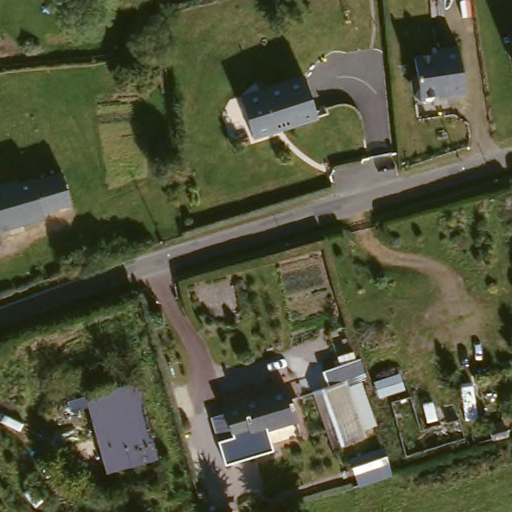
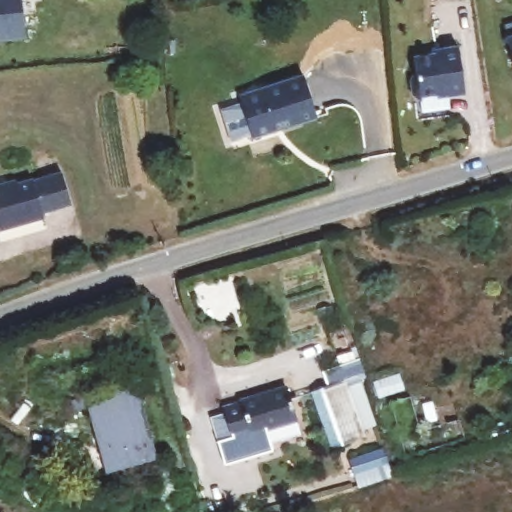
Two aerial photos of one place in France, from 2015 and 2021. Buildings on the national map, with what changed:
new [(0,38),(0,0),(21,0),(25,35),(0,38)]
unchanged [(501,23),(512,19),(512,62),(501,23)]
unchanged [(447,92),(420,96),(415,93),(413,80),(417,75),(414,56),(437,53),(436,49),(458,46),(466,93),(448,95),(447,92)]
unchanged [(319,111),(277,124),(278,129),(256,136),(243,94),(307,73),(319,111)]
unchanged [(14,183),(64,170),(71,202),(39,210),(40,218),(0,227),(0,181),(12,178),(14,183)]
unchanged [(310,391),(348,379),(362,433),(323,444),(310,391)]
unchanged [(287,384),(297,421),(234,439),(222,404),(287,384)]
unchanged [(120,392),(126,418),(147,414),(159,462),(104,474),(86,400),(120,392)]
unchanged [(272,450),(226,464),(218,442),(211,416),(225,411),(234,439),(266,430),(272,450)]
unchanged [(352,472),(346,451),(377,442),(383,464),(352,472)]

